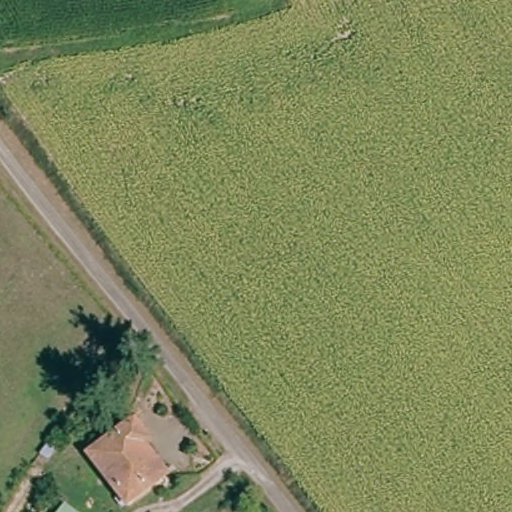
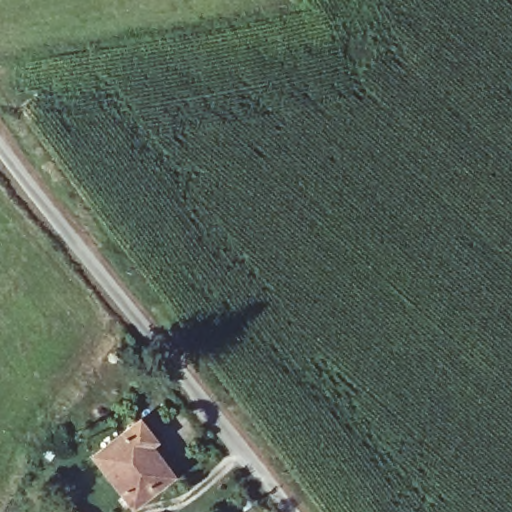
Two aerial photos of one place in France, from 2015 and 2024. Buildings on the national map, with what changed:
unchanged [(128,420),(142,438),(136,443),(160,475),(123,504),(85,453),(128,420)]
unchanged [(74,512),(59,512),(65,505),(74,512)]

